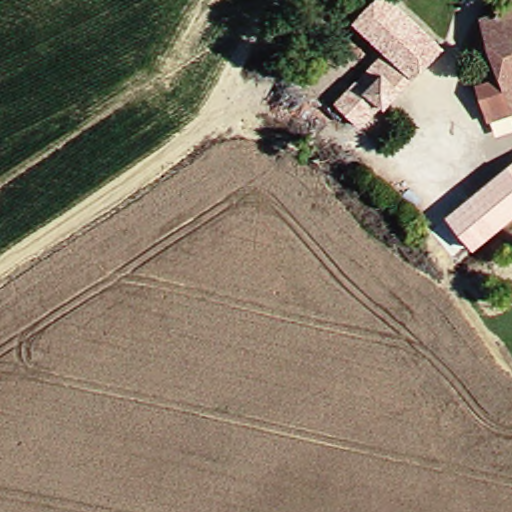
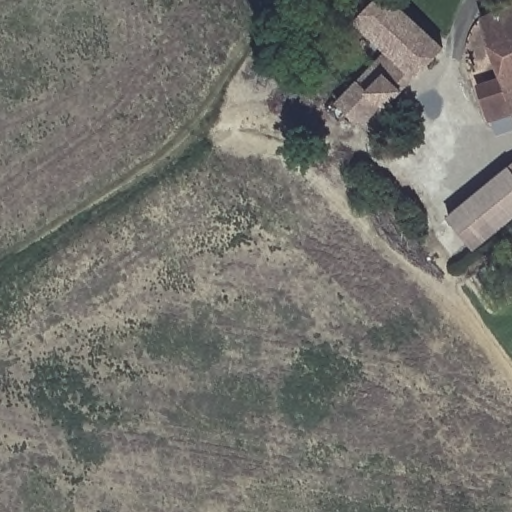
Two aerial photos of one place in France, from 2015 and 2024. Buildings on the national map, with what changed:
unchanged [(364,64),(380,50),(358,27),(349,19),(369,0),(388,0),(423,32),(425,34),(438,47),(376,105),(372,101),(354,116),(330,93),(364,64)]
unchanged [(490,118),(478,85),(503,77),(480,17),(512,4),(512,110),(490,118)]
unchanged [(477,242),(453,213),(512,167),(512,215),(477,242)]

